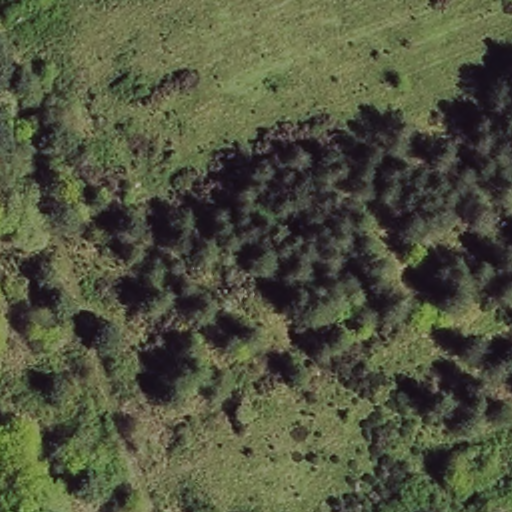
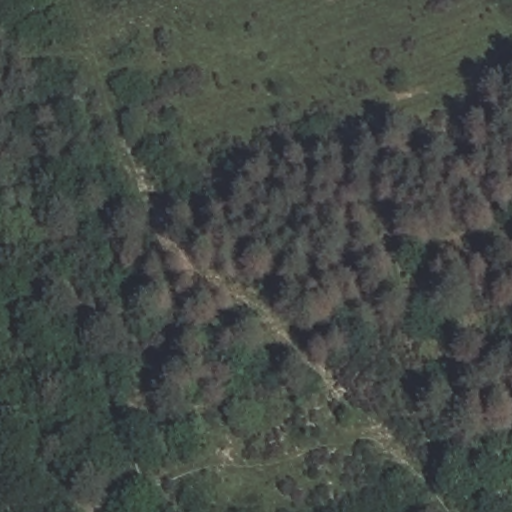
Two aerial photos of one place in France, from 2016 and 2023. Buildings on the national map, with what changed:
[]

